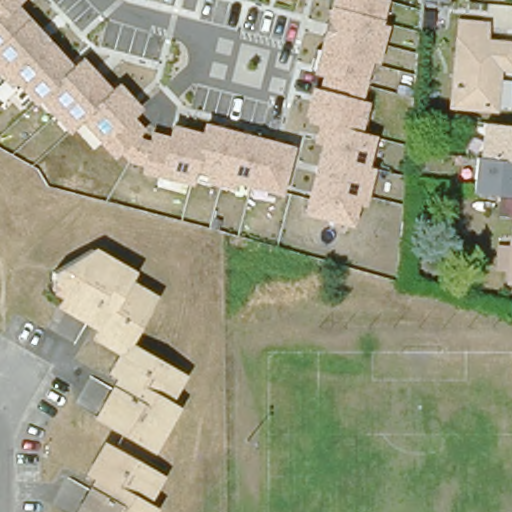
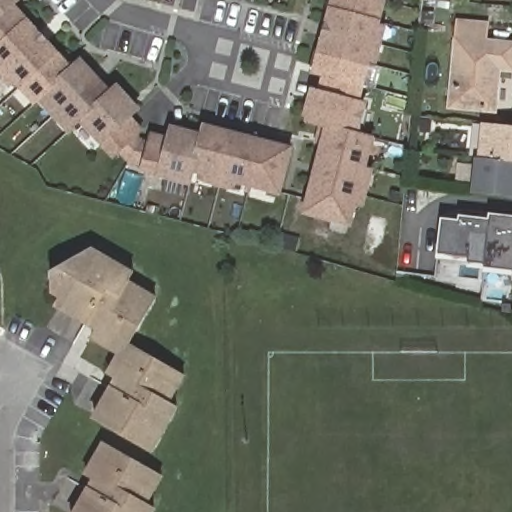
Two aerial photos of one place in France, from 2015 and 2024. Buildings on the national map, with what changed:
unchanged [(73,65),(83,56),(112,90),(119,83),(142,109),(133,118),(145,130),(140,136),(143,139),(150,141),(152,131),(169,136),(171,125),(202,132),(204,123),(296,146),(283,196),(237,184),(236,192),(205,183),(206,175),(195,173),(192,186),(142,173),(143,167),(130,163),(121,154),(114,160),(82,123),(69,134),(40,102),(36,106),(17,84),(11,89),(0,76),(0,0),(23,0),(18,5),(73,65)]
unchanged [(314,145),(321,125),(303,121),(312,87),(320,89),(323,76),(314,74),(331,0),(388,0),(382,24),(389,26),(379,65),(372,63),(363,100),(370,101),(362,131),(377,136),(369,168),(375,169),(366,207),(359,205),(354,227),(304,213),(321,146),(314,145)]
unchanged [(482,43),(512,45),(512,70),(496,68),(493,110),(451,106),(458,21),(482,23),(482,43)]
unchanged [(474,193),(477,158),(483,158),(486,124),(512,126),(512,196),(497,196),(474,193)]
demolished [(512,197),(512,217),(494,215),(497,196),(512,197)]
new [(484,269),(468,267),(469,263),(437,259),(438,254),(442,218),(459,220),(459,215),(488,218),(489,214),(512,216),(512,275),(484,272),(484,269)]
demolished [(504,252),(512,252),(512,272),(502,271),(504,252)]
unchanged [(122,278),(119,286),(154,304),(126,354),(178,386),(164,413),(173,419),(148,461),(93,428),(116,388),(106,381),(112,368),(83,350),(86,344),(52,323),(57,314),(47,309),(82,255),(122,278)]
unchanged [(100,489),(92,483),(109,455),(162,486),(147,512),(87,512),(100,489)]

